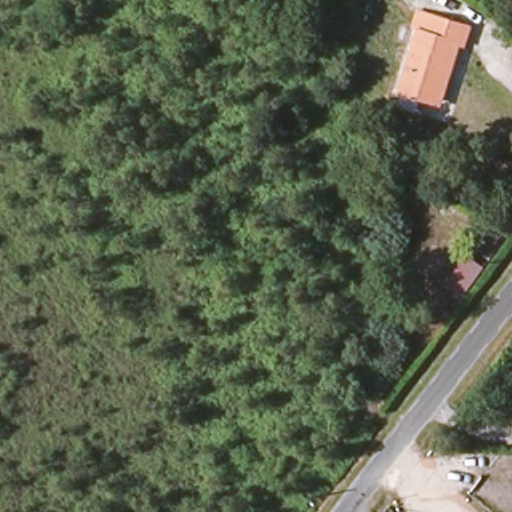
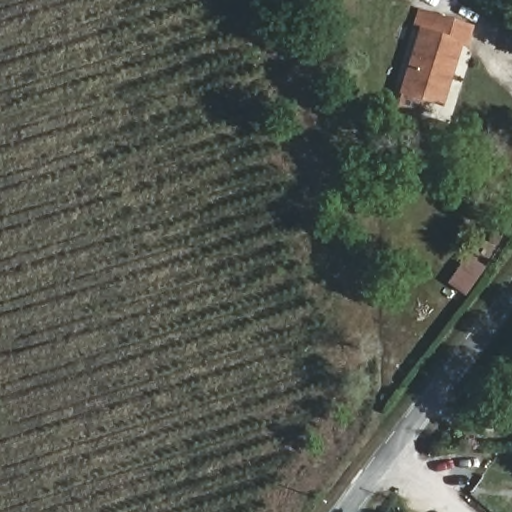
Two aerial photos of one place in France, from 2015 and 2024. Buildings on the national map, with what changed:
unchanged [(413,1),(411,0),(413,0),(413,1)]
unchanged [(415,32),(422,15),(432,18),(472,32),(470,36),(444,109),(404,98),(427,33),(415,32)]

